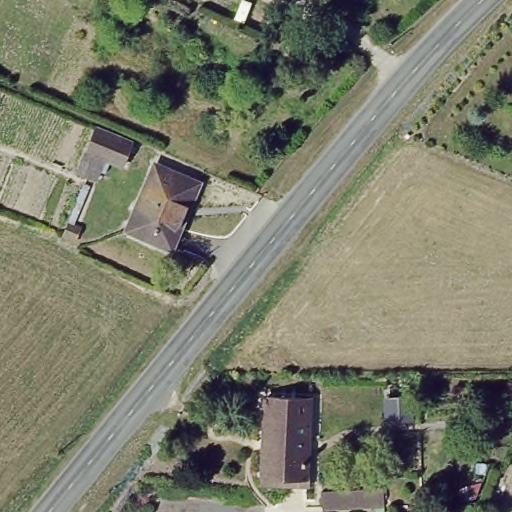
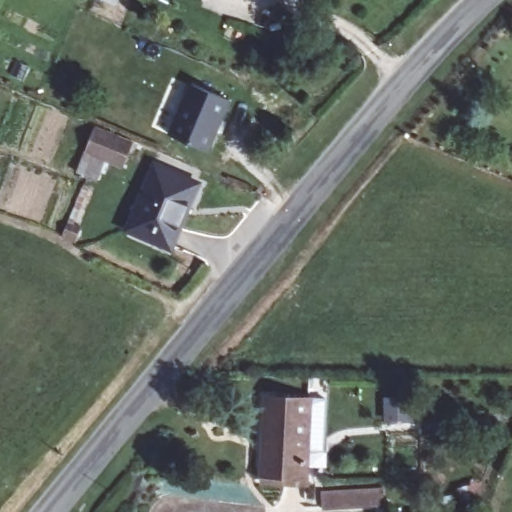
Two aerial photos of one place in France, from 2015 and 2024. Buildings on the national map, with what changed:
new [(195,80),(233,96),(225,116),(224,116),(219,127),(220,127),(212,147),(174,131),(195,80)]
unchanged [(130,133),(119,157),(105,151),(96,171),(75,162),(95,118),(130,133)]
unchanged [(193,170),(173,237),(130,224),(150,157),(193,170)]
unchanged [(65,227),(81,235),(72,256),(56,251),(65,227)]
unchanged [(308,476),(259,473),(260,464),(263,464),(265,387),(308,388),(305,466),(309,466),(308,476)]

